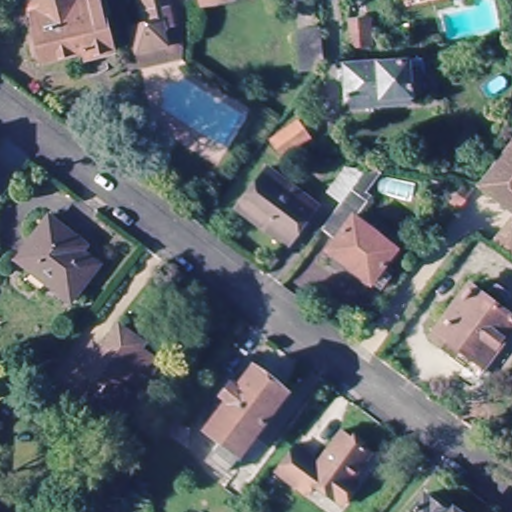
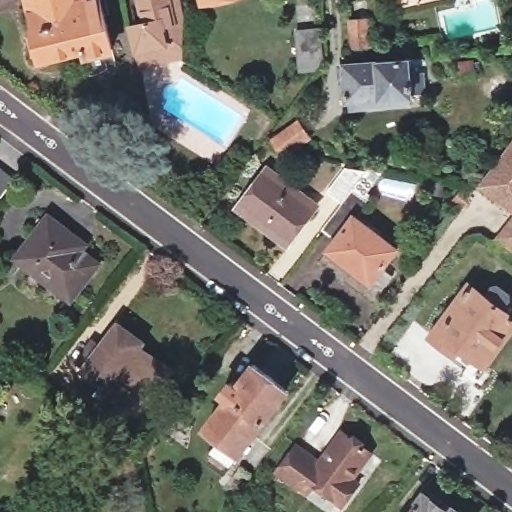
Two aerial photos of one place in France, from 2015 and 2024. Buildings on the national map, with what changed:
unchanged [(89,57),(87,51),(44,61),(30,0),(104,0),(116,50),(89,57)]
unchanged [(127,15),(140,12),(137,0),(178,0),(179,1),(177,25),(176,47),(138,56),(132,37),(127,15)]
unchanged [(206,0),(228,0),(208,6),(206,0)]
unchanged [(375,15),(377,42),(357,45),(355,16),(375,15)]
unchanged [(320,28),(322,62),(314,72),(300,72),(297,30),(320,28)]
unchanged [(352,111),(351,101),(347,62),(410,57),(412,72),(425,71),(426,92),(413,93),(414,96),(415,106),(352,111)]
unchanged [(275,142),(297,124),(311,139),(296,151),(287,158),(275,142)]
unchanged [(486,183),(512,148),(512,205),(485,185),(486,183)]
unchanged [(313,202),(285,243),(237,209),(266,169),(313,202)]
unchanged [(372,195),(375,197),(360,219),(399,250),(385,268),(395,276),(383,292),(329,251),(336,241),(322,229),(341,206),(329,197),(347,172),(364,175),(368,169),(385,177),(372,195)]
unchanged [(0,195),(0,172),(11,180),(0,195)]
unchanged [(472,202),(462,214),(455,207),(472,186),(480,192),(472,202)]
unchanged [(49,219),(80,242),(75,248),(100,267),(85,287),(80,284),(66,302),(64,302),(14,263),(49,219)]
unchanged [(512,229),(512,247),(503,241),(512,229)]
unchanged [(475,380),(447,358),(448,356),(428,341),(467,288),(480,298),(489,287),(508,302),(500,313),(512,322),(512,334),(483,368),(475,380)]
unchanged [(93,367),(79,356),(90,342),(104,352),(126,324),(147,340),(146,344),(167,361),(121,422),(89,397),(105,377),(93,367)]
unchanged [(288,390),(225,473),(207,461),(222,440),(207,428),(230,396),(224,390),(231,380),(238,385),(255,363),(288,390)]
unchanged [(322,460),(346,431),(375,453),(355,480),(362,485),(346,505),(318,485),(310,495),(279,472),(301,444),(322,460)]
unchanged [(428,503),(433,497),(454,512),(415,512),(425,501),(428,503)]

